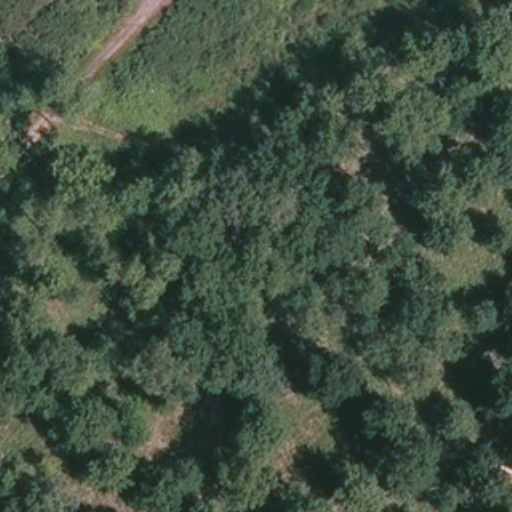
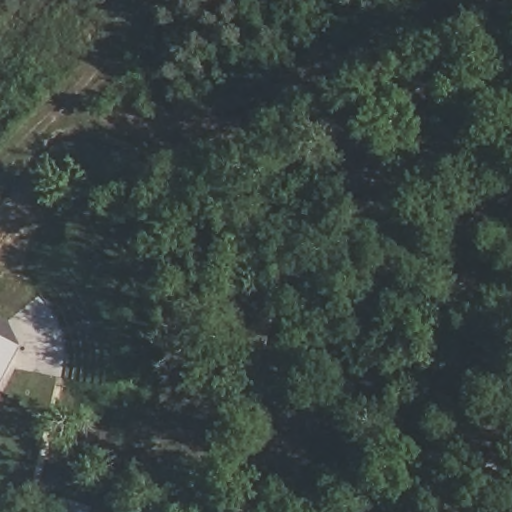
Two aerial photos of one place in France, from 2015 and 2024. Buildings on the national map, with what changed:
new [(0,389),(0,334),(22,347),(0,389)]

